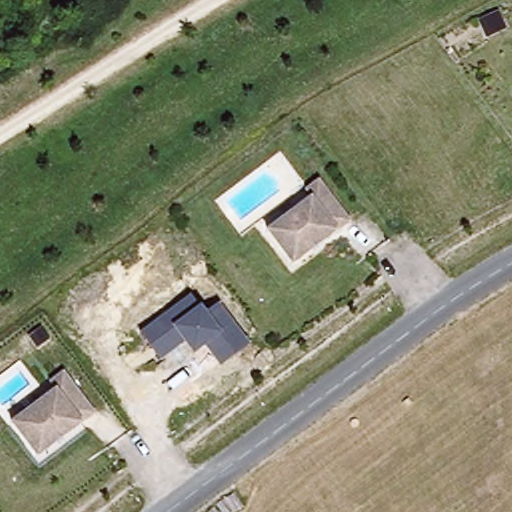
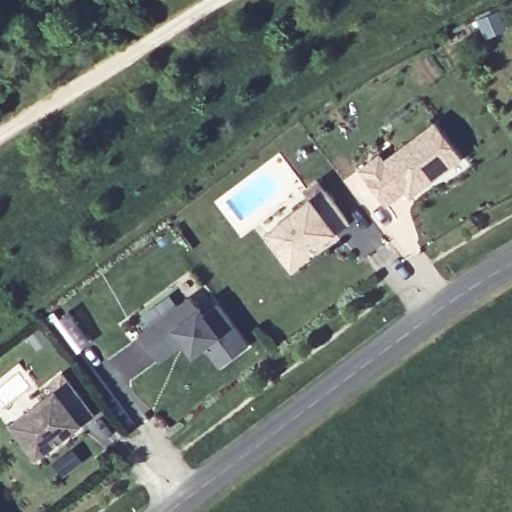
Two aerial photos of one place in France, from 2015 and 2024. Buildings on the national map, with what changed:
new [(378,154),(383,160),(433,122),(460,159),(409,197),(405,191),(386,205),(358,169),(378,154)]
unchanged [(353,222),(295,266),(270,232),(313,199),(308,191),(321,181),(353,222)]
unchanged [(205,314),(219,304),(249,344),(218,368),(203,346),(189,355),(182,346),(160,362),(138,334),(190,296),(205,314)]
unchanged [(61,373),(92,414),(35,458),(9,425),(53,391),(47,384),(61,373)]

